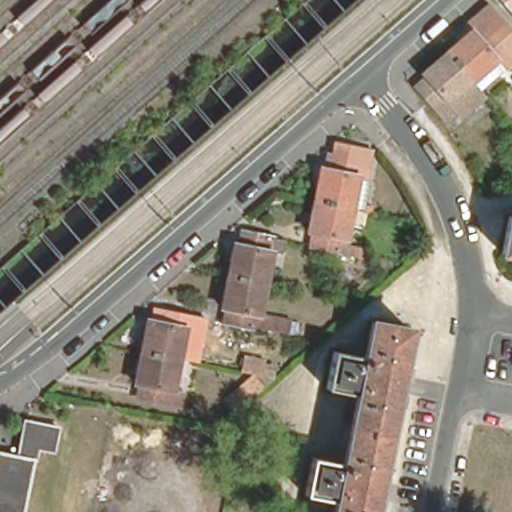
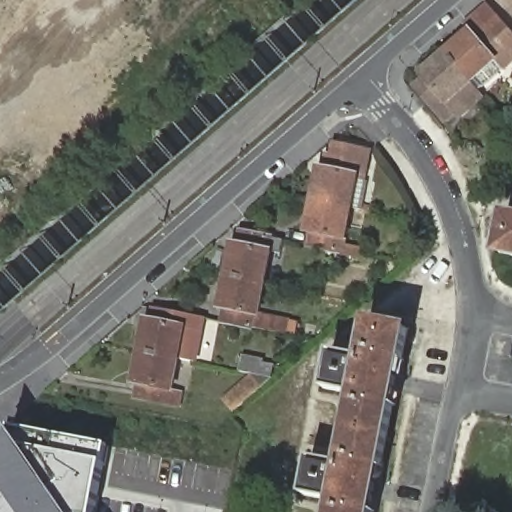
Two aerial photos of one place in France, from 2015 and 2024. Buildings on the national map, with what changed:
unchanged [(512,0),(512,19),(496,0),(512,0)]
unchanged [(512,55),(498,68),(490,59),(466,81),(445,57),(470,35),(460,23),(482,3),(492,15),(512,37),(512,55)]
unchanged [(479,96),(455,117),(450,112),(440,121),(414,92),(424,82),(421,79),(445,57),(466,81),(479,96)]
unchanged [(341,211),(318,206),(314,206),(320,174),(326,175),(328,161),(338,163),(341,150),(371,156),(365,185),(357,184),(351,212),(341,211)]
unchanged [(310,251),(313,237),(308,236),(314,206),(318,206),(341,211),(351,212),(345,244),(356,246),(353,260),(310,251)]
unchanged [(512,256),(500,254),(507,216),(512,217),(512,256)]
unchanged [(223,282),(228,251),(234,252),(236,237),(276,246),(273,259),(265,257),(259,288),(223,282)]
unchanged [(283,339),(245,332),(219,327),(221,314),(216,313),(223,282),(259,288),(253,320),(285,324),(283,339)]
unchanged [(147,321),(152,322),(155,308),(203,317),(202,322),(190,321),(188,328),(183,327),(177,359),(141,352),(147,321)]
unchanged [(408,330),(399,377),(396,393),(378,482),(375,500),(373,512),(334,512),(336,502),(328,501),(303,496),(311,457),(343,463),(344,460),(351,425),(357,396),(349,394),(324,389),(332,351),(364,357),(371,322),(408,330)]
unchanged [(177,359),(171,391),(182,392),(179,407),(137,398),(140,384),(134,383),(141,352),(177,359)]
unchanged [(240,372),(243,356),(264,360),(263,362),(274,365),(272,378),(249,399),(241,406),(234,412),(223,400),(253,375),(240,372)]
demolished [(18,456),(25,422),(57,428),(53,450),(36,447),(23,512),(0,512),(0,452),(18,456)]
new [(11,426),(110,446),(106,463),(97,512),(0,512),(0,491),(2,481),(13,428),(11,426)]

